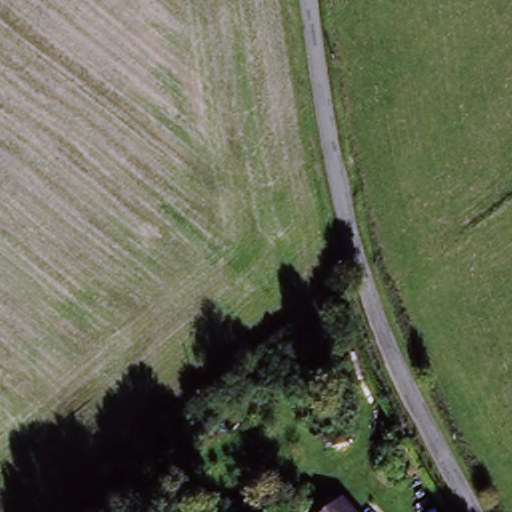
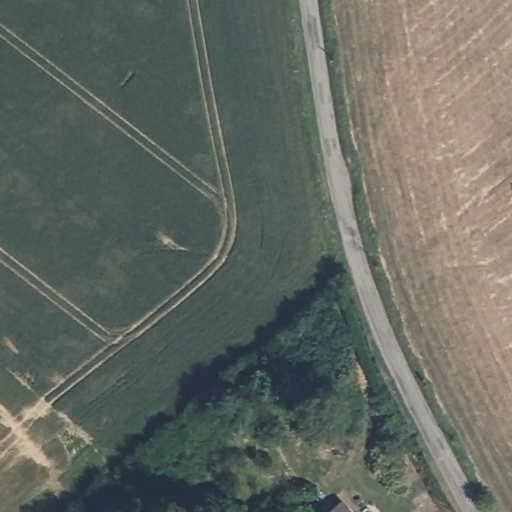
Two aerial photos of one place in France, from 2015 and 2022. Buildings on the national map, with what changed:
unchanged [(344,508),(347,512),(339,512),(344,508)]

